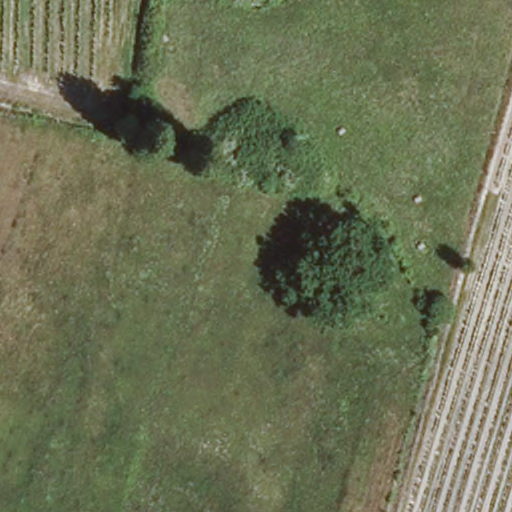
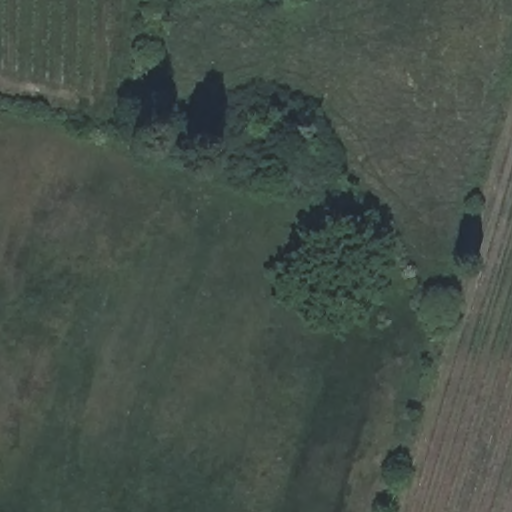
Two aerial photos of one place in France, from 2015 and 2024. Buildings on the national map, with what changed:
[]

